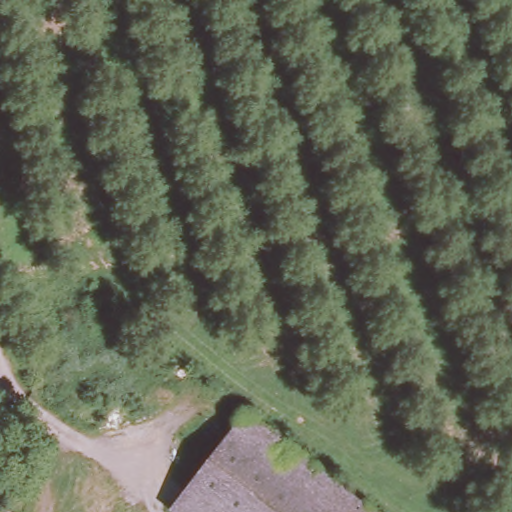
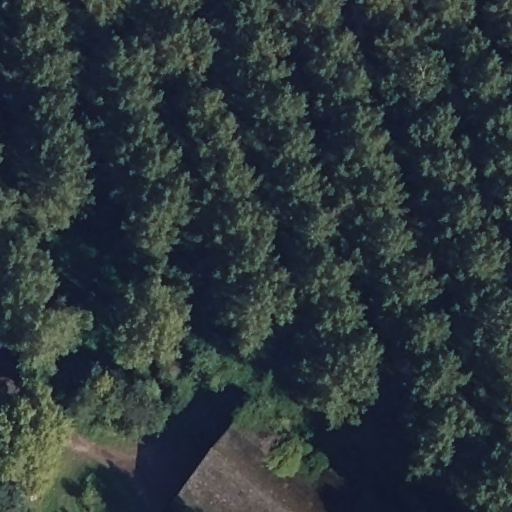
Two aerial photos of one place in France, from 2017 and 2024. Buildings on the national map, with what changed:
unchanged [(246,415),(372,512),(173,512),(246,415)]

